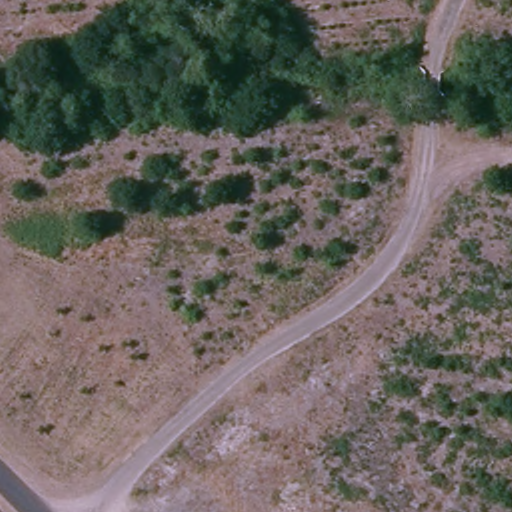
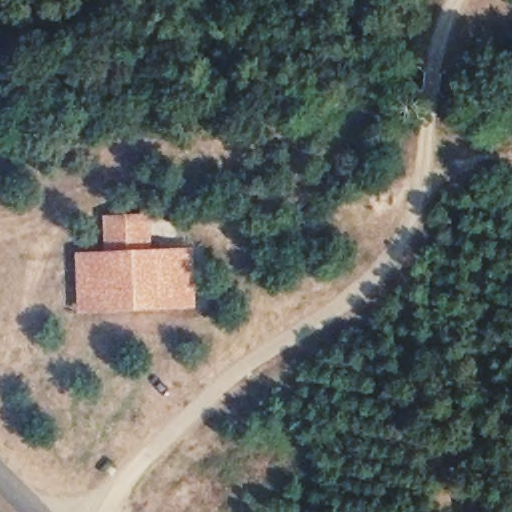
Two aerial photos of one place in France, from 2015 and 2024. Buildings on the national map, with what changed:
new [(147,218),(149,253),(109,255),(107,220),(147,218)]
new [(81,298),(80,256),(109,255),(149,253),(176,252),(191,251),(193,306),(179,306),(107,309),(82,310),(81,298)]

